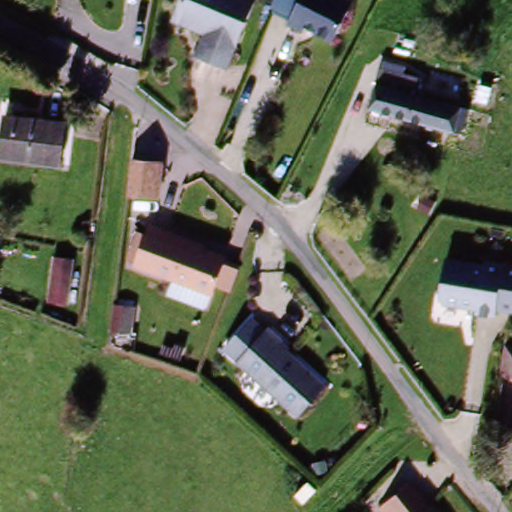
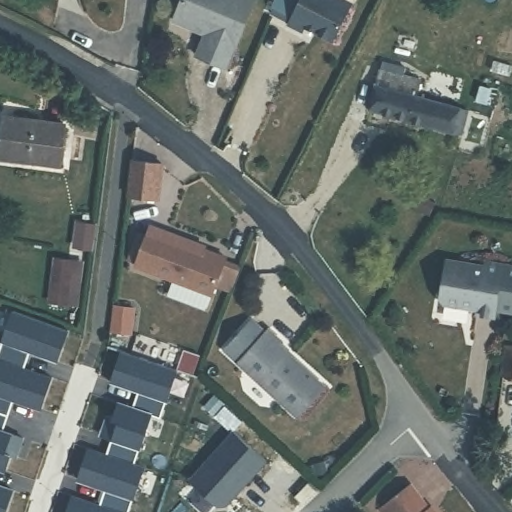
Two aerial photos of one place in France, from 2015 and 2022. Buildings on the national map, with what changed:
unchanged [(225,70),(192,57),(201,35),(167,20),(175,0),(251,0),(225,70)]
unchanged [(357,2),(340,41),(311,27),(308,33),(292,25),(296,17),(276,9),(279,0),(351,0),(357,2)]
unchanged [(377,69),(416,79),(412,93),(465,109),(459,133),(366,107),(377,69)]
unchanged [(64,129),(60,167),(0,161),(0,144),(2,122),(64,129)]
new [(160,166),(156,200),(126,197),(130,162),(160,166)]
unchanged [(211,282),(200,307),(162,292),(168,278),(130,264),(146,222),(195,241),(193,244),(222,257),(221,259),(236,265),(227,289),(211,282)]
new [(84,260),(80,305),(49,303),(54,257),(84,260)]
unchanged [(485,257),(512,263),(512,313),(496,310),(496,317),(477,315),(477,310),(439,302),(446,260),(484,265),(485,257)]
unchanged [(115,305),(134,307),(131,333),(112,331),(115,305)]
new [(15,400),(4,431),(24,438),(17,457),(11,455),(6,470),(0,468),(0,352),(15,310),(69,330),(58,361),(31,352),(26,368),(53,377),(42,409),(15,400)]
unchanged [(223,354),(251,323),(264,335),(268,331),(280,343),(278,345),(325,390),(298,418),(223,354)]
unchanged [(505,347),(512,348),(512,376),(501,375),(505,347)]
new [(158,417),(149,415),(132,463),(141,466),(125,512),(65,512),(71,495),(98,505),(103,488),(76,480),(87,448),(104,454),(110,438),(99,435),(105,415),(111,417),(117,402),(131,407),(136,391),(109,382),(120,350),(175,370),(158,417)]
new [(225,511),(218,511),(190,486),(234,437),(265,465),(225,511)]
new [(13,490),(6,512),(0,512),(0,486),(13,490)]
new [(314,493),(301,507),(293,500),(306,486),(314,493)]
unchanged [(410,487),(426,510),(427,512),(389,512),(384,505),(410,487)]

